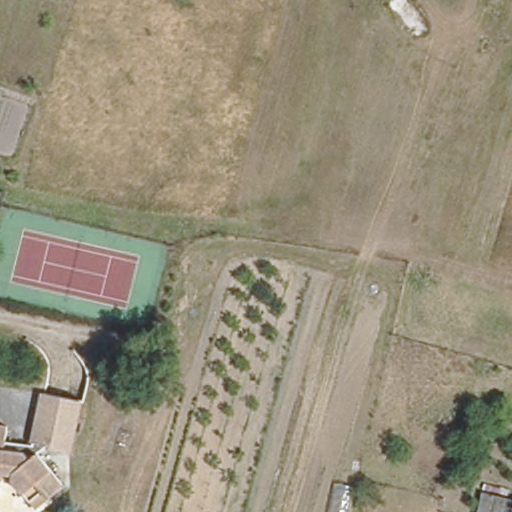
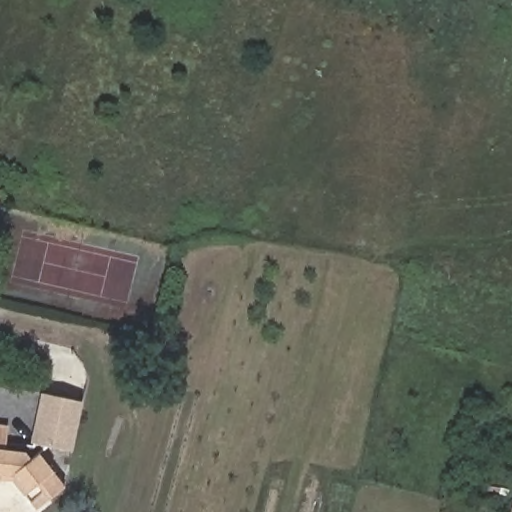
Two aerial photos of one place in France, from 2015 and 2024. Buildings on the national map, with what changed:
unchanged [(81,407),(71,457),(36,450),(46,400),(81,407)]
unchanged [(13,487),(13,486),(1,485),(1,486),(0,486),(0,447),(15,449),(14,456),(25,457),(31,465),(38,460),(66,490),(49,504),(40,512),(36,512),(31,507),(13,487)]

